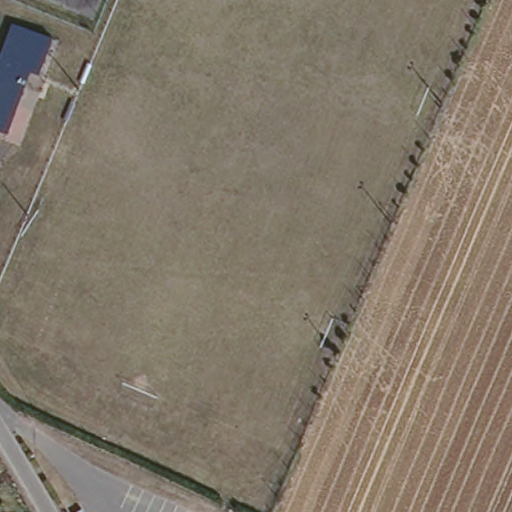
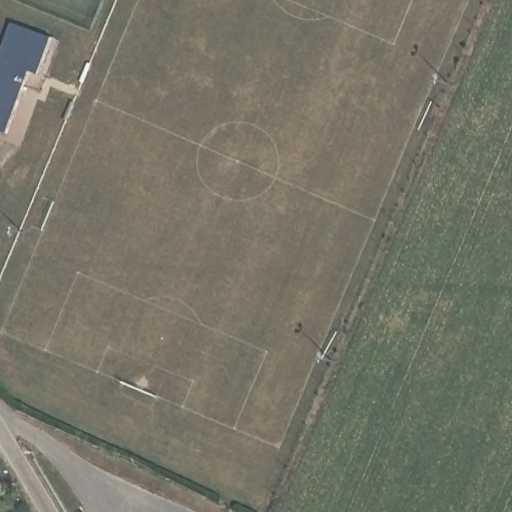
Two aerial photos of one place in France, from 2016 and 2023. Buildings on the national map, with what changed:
unchanged [(0,44),(2,45),(14,21),(43,35),(8,129),(0,126),(0,44)]

